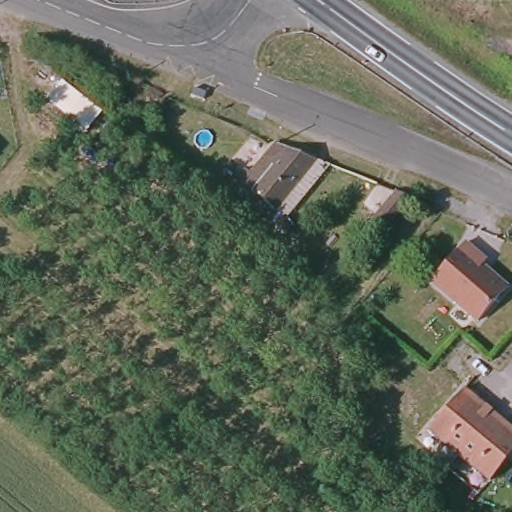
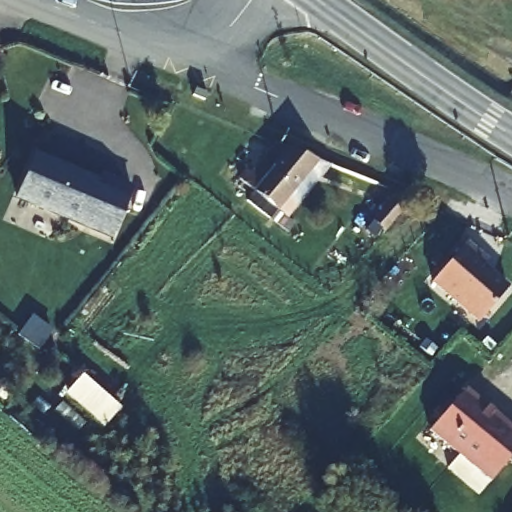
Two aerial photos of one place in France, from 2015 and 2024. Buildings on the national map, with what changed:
new [(132,188),(113,238),(16,198),(35,151),(132,188)]
unchanged [(254,201),(261,191),(236,169),(241,163),(259,177),(275,157),(276,158),(282,151),(321,167),(285,211),(278,220),(254,201)]
unchanged [(393,221),(409,202),(428,210),(407,234),(399,244),(384,231),(393,221)]
unchanged [(468,247),(489,265),(485,270),(510,292),(481,325),(434,285),(468,247)]
new [(19,333),(30,316),(51,331),(39,348),(19,333)]
new [(66,393),(81,377),(118,410),(103,426),(66,393)]
new [(0,396),(0,390),(6,382),(13,389),(4,399),(0,396)]
unchanged [(486,487),(426,434),(461,395),(512,438),(512,460),(509,463),(486,487)]
unchanged [(512,460),(512,467),(509,463),(512,460)]

